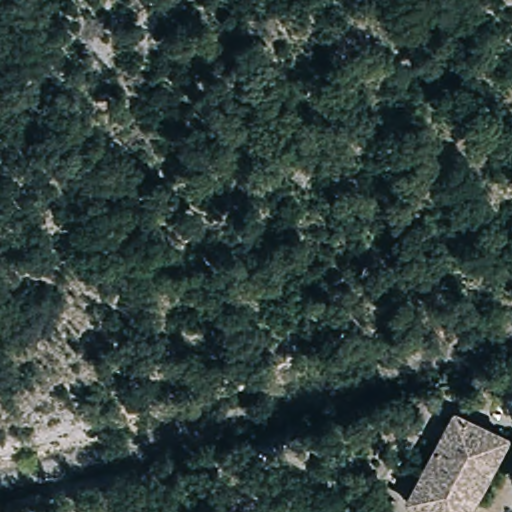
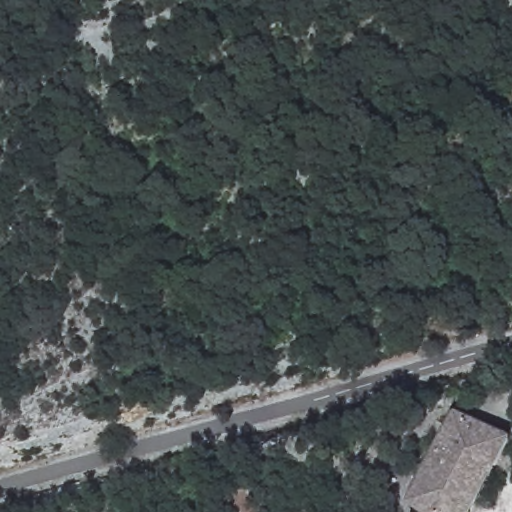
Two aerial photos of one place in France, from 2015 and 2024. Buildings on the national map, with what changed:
unchanged [(469,512),(419,512),(408,505),(457,417),(507,444),(469,512)]

